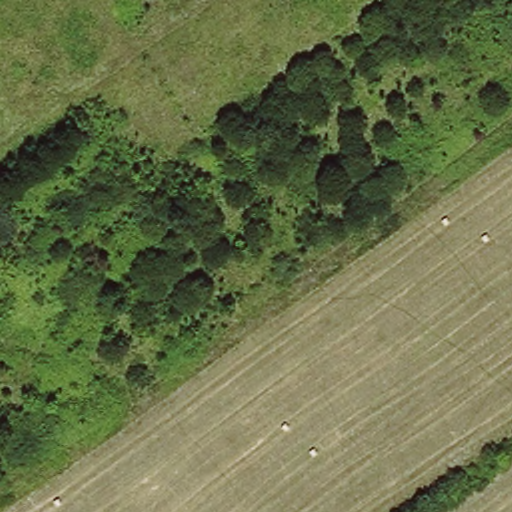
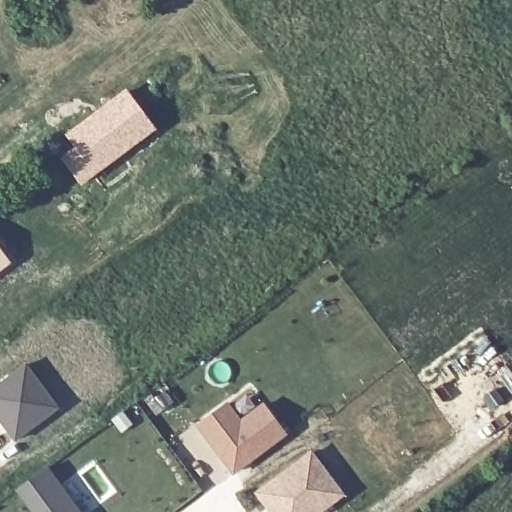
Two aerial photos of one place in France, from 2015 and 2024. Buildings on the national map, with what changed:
new [(71,146),(63,135),(125,87),(157,129),(81,187),(58,157),(71,146)]
new [(0,272),(0,247),(12,262),(0,272)]
new [(60,408),(14,442),(0,424),(0,379),(25,360),(60,408)]
new [(164,381),(177,400),(155,416),(141,398),(164,381)]
new [(224,403),(237,421),(259,404),(281,433),(230,472),(194,426),(224,403)]
new [(307,452),(338,493),(314,512),(268,512),(254,493),(307,452)]
new [(45,470),(75,512),(29,512),(15,493),(45,470)]

